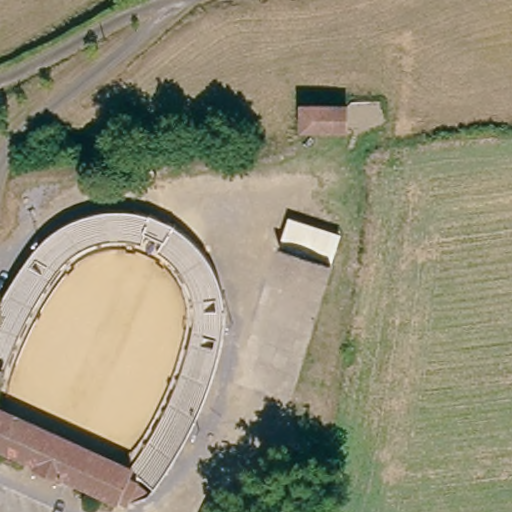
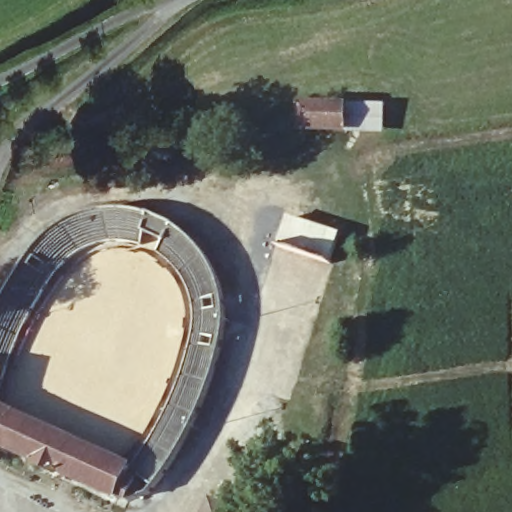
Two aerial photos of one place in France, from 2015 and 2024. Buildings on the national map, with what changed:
unchanged [(347,129),(305,128),(304,107),(347,108),(347,129)]
unchanged [(120,506),(64,481),(63,484),(35,470),(36,468),(0,452),(0,410),(2,411),(128,468),(133,470),(141,459),(148,449),(154,439),(160,428),(165,418),(174,399),(178,389),(181,380),(184,370),(190,352),(192,343),(194,334),(194,325),(195,317),(193,309),(192,301),(188,294),(185,286),(181,279),(176,272),(170,266),(161,260),(158,257),(164,246),(147,238),(143,250),(141,250),(133,248),(123,247),(109,247),(87,254),(73,263),(60,275),(51,286),(44,297),(38,307),(33,317),(28,327),(23,337),(18,347),(14,357),(11,366),(8,375),(6,380),(5,385),(0,403),(0,310),(2,306),(12,289),(15,283),(26,266),(36,254),(48,241),(64,229),(81,221),(98,216),(116,215),(130,215),(130,212),(136,213),(136,216),(150,219),(151,218),(177,230),(177,231),(183,235),(192,242),(204,255),(214,271),(221,287),(225,301),(226,312),(227,321),(226,329),(223,350),(219,366),(212,389),(203,411),(194,430),(183,452),(172,471),(160,488),(151,500),(130,508),(121,503),(120,506)]
unchanged [(332,261),(282,244),(291,218),(340,235),(332,261)]

